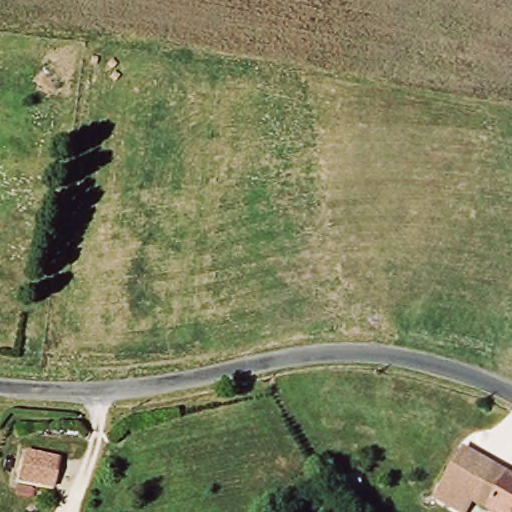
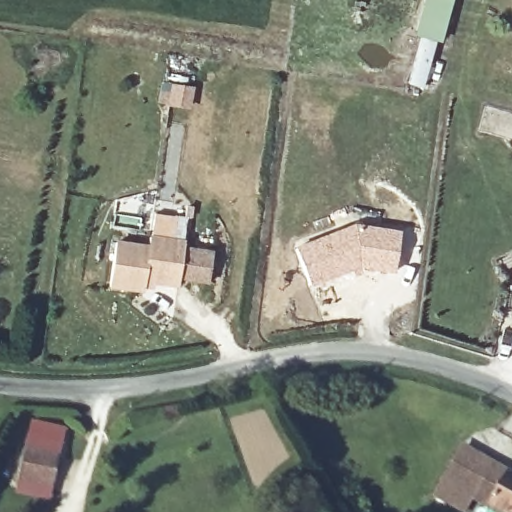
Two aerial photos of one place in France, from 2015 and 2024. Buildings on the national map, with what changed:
new [(451,0),(438,44),(412,37),(422,0),(451,0)]
new [(208,281),(179,277),(178,285),(146,281),(144,291),(110,286),(117,242),(148,246),(150,236),(151,236),(154,213),(174,216),(170,239),(184,241),(183,248),(212,252),(208,281)]
new [(357,221),(358,223),(401,231),(394,274),(359,270),(348,272),(310,285),(293,244),(357,221)]
unchanged [(462,442),(512,469),(512,512),(499,512),(475,499),(467,512),(465,512),(432,494),(462,442)]
unchanged [(19,485),(26,449),(60,455),(51,490),(19,485)]

